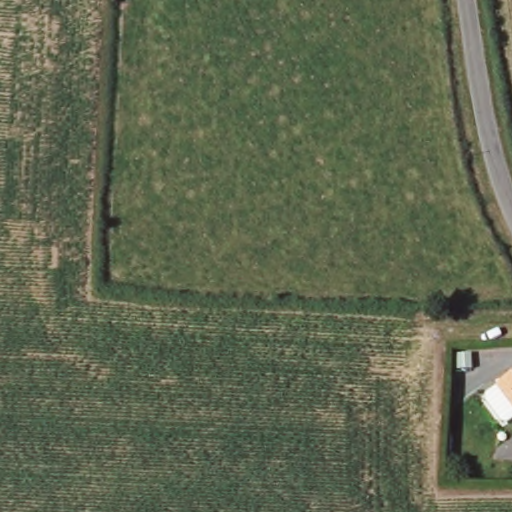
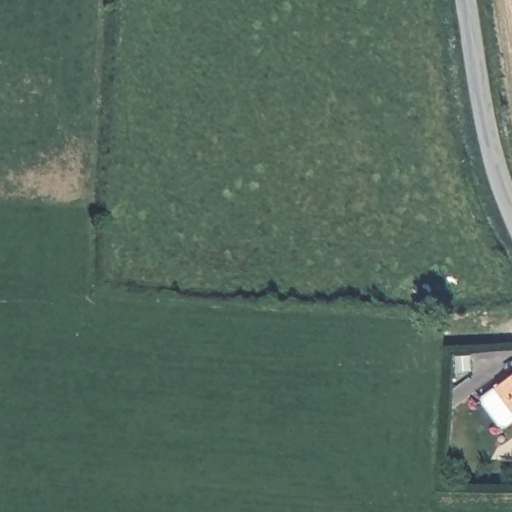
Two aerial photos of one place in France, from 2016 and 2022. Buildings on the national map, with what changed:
unchanged [(512,418),(510,419),(505,418),(490,397),(490,391),(502,383),(501,382),(512,375),(512,418)]

